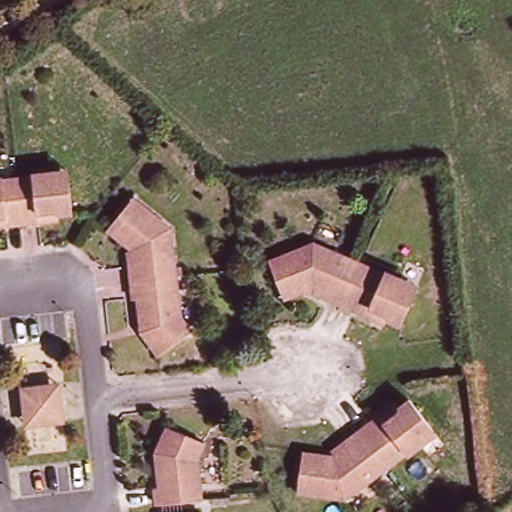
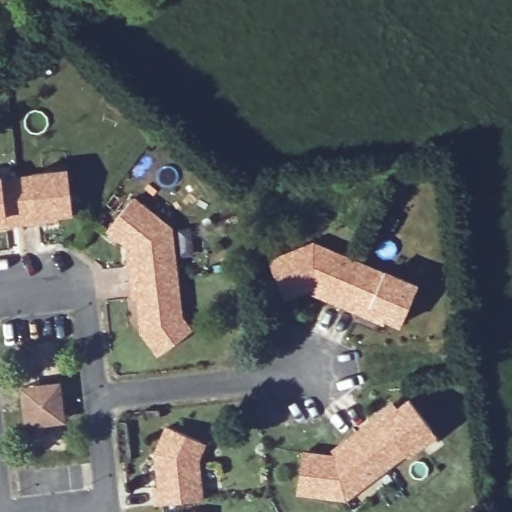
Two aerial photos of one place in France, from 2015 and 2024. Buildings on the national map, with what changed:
unchanged [(30,178),(30,174),(55,171),(70,169),(71,180),(73,215),(62,215),(62,221),(40,224),(5,226),(0,227),(0,180),(30,178)]
unchanged [(139,303),(133,298),(130,271),(129,251),(110,231),(136,201),(170,233),(181,326),(188,335),(159,358),(141,337),(140,315),(139,303)]
unchanged [(322,297),(301,289),(281,296),(271,260),(314,243),(322,246),(317,251),(341,261),(342,256),(401,278),(416,283),(414,290),(401,323),(383,317),(377,319),(354,310),(322,297)]
unchanged [(61,424),(25,426),(22,389),(59,386),(61,424)]
unchanged [(299,497),(305,456),(333,460),(349,446),(373,427),(395,410),(401,414),(411,403),(434,431),(439,437),(426,447),(413,457),(409,455),(367,487),(349,501),(299,497)]
unchanged [(192,446),(188,456),(191,504),(163,506),(147,510),(146,492),(149,492),(149,479),(148,456),(158,430),(192,446)]

